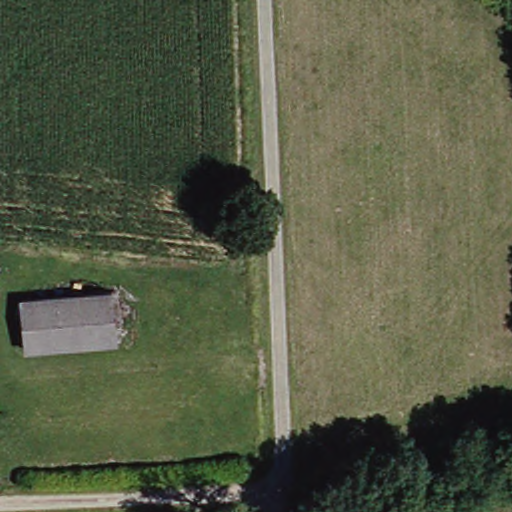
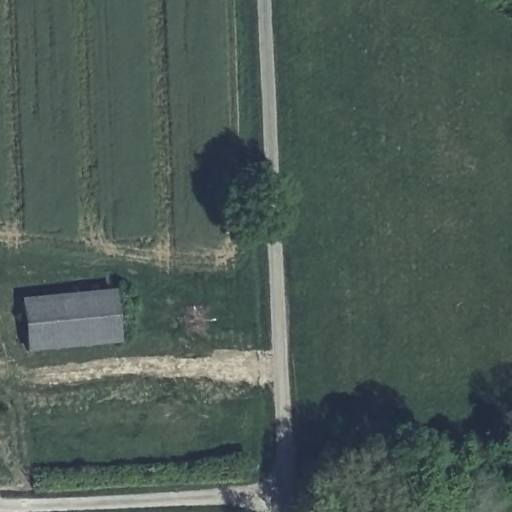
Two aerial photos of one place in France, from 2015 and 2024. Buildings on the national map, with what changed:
unchanged [(122,346),(30,351),(27,301),(119,296),(122,346)]

